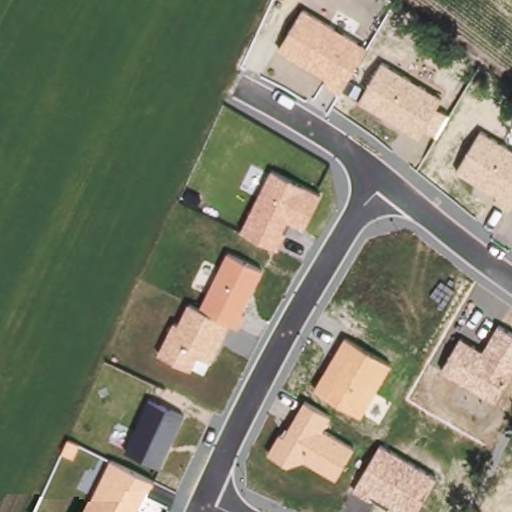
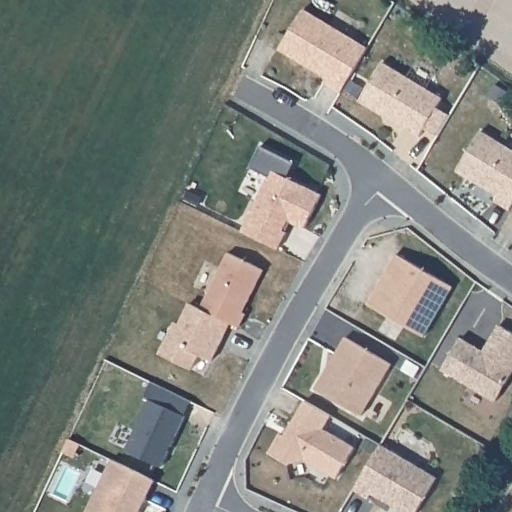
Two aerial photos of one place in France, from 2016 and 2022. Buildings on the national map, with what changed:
unchanged [(322,84),(326,74),(279,49),(305,6),(368,44),(339,93),(322,84)]
unchanged [(382,61),(443,96),(437,106),(452,115),(437,137),(422,130),(418,136),(360,101),(382,61)]
unchanged [(494,203),(498,195),(458,172),(481,128),(512,146),(512,205),(509,211),(494,203)]
unchanged [(242,229),(273,168),(320,193),(304,228),(289,220),(284,228),(288,230),(277,248),(242,229)]
new [(397,253),(453,287),(424,336),(368,303),(397,253)]
unchanged [(159,352),(173,321),(179,325),(189,302),(202,308),(229,254),(262,271),(242,311),(245,313),(238,328),(228,323),(211,363),(198,355),(190,369),(159,352)]
unchanged [(442,369),(461,336),(482,349),(497,323),(512,331),(512,371),(495,400),(442,369)]
unchanged [(314,387),(344,337),(393,362),(361,415),(314,387)]
unchanged [(125,451),(150,398),(185,416),(159,466),(125,451)]
unchanged [(304,459),(288,462),(266,453),(279,434),(283,435),(303,400),(330,414),(322,429),(354,446),(335,476),(304,459)]
unchanged [(436,478),(415,512),(406,512),(372,491),(367,497),(353,489),(380,444),(436,478)]
unchanged [(154,480),(138,512),(86,512),(110,459),(154,480)]

